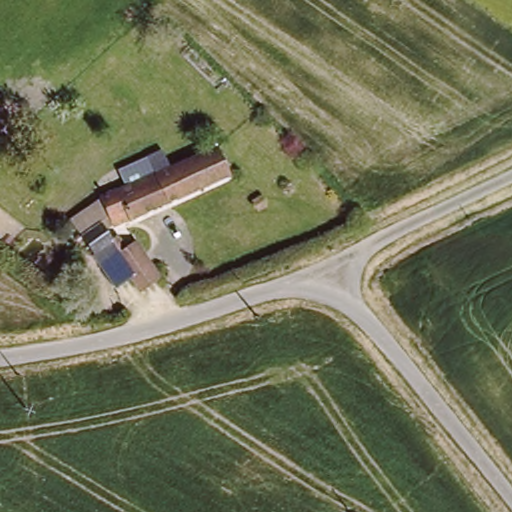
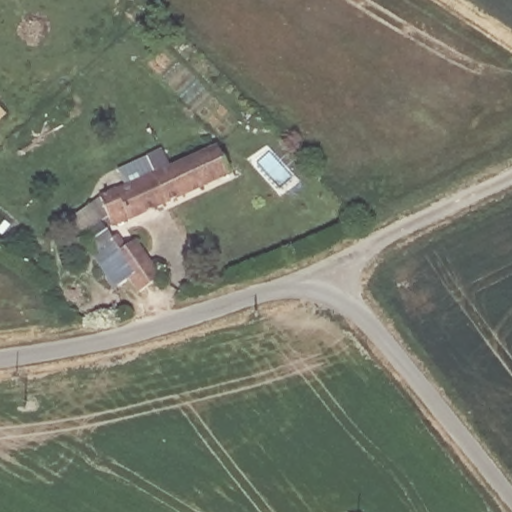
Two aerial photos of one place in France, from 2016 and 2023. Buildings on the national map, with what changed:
unchanged [(218,145),(230,175),(119,223),(117,222),(100,199),(218,145)]
unchanged [(165,279),(145,293),(142,288),(139,287),(117,257),(107,244),(95,251),(83,237),(107,224),(115,236),(123,230),(134,245),(138,242),(165,279)]

